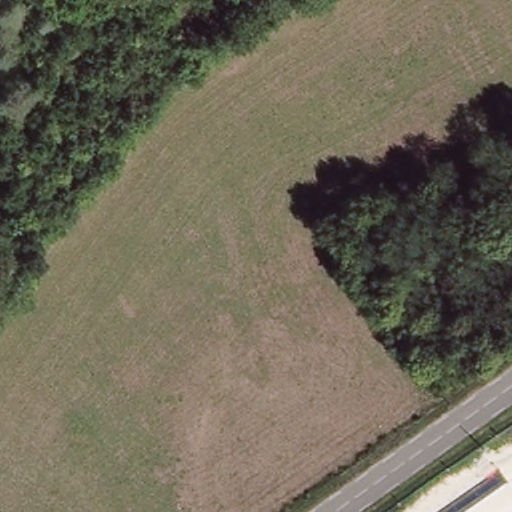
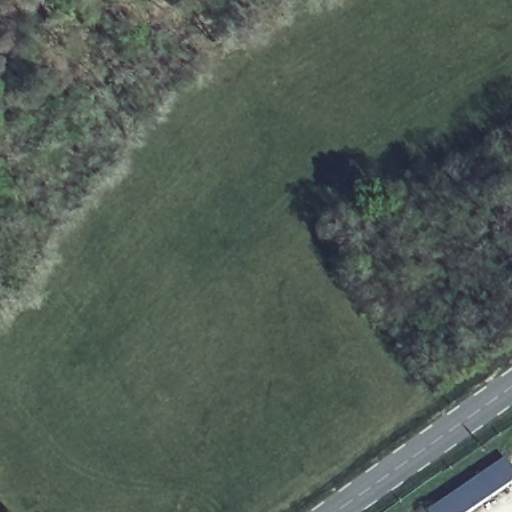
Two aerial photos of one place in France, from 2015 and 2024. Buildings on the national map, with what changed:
new [(471,512),(430,512),(504,461),(512,473),(512,483),(471,512)]

